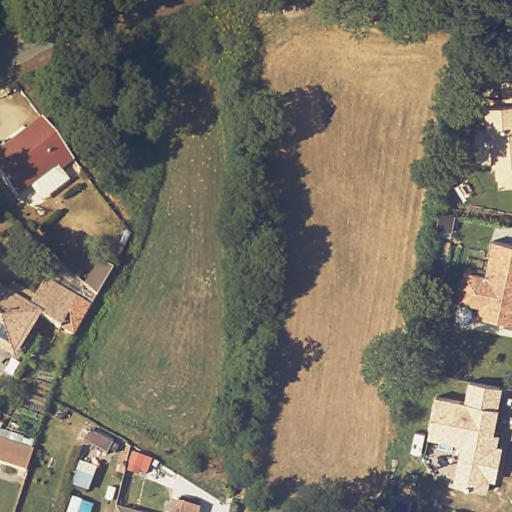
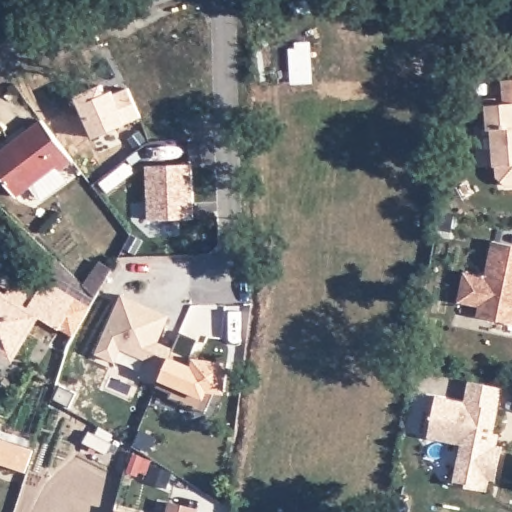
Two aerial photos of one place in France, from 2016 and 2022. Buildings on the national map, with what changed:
unchanged [(503,79),(512,79),(512,184),(507,184),(499,177),(498,165),(495,165),(492,128),(490,128),(488,104),(505,102),(505,96),(503,79)]
unchanged [(57,165),(17,195),(0,174),(0,153),(42,120),(74,160),(61,170),(57,165)]
new [(145,165),(193,162),(194,217),(146,217),(145,165)]
unchanged [(482,306),(461,302),(466,272),(487,277),(495,241),(512,245),(512,323),(480,316),(482,306)]
unchanged [(113,269),(97,296),(85,285),(100,261),(113,269)]
unchanged [(74,336),(59,328),(38,315),(28,332),(23,330),(10,351),(0,345),(0,292),(6,295),(13,285),(21,290),(34,297),(45,280),(77,299),(91,306),(74,336)]
new [(122,293),(171,313),(160,340),(174,345),(181,331),(198,337),(191,356),(231,360),(225,393),(213,391),(204,412),(169,397),(172,391),(139,377),(145,359),(121,348),(114,362),(96,354),(122,293)]
unchanged [(484,385),(499,388),(495,408),(496,409),(488,449),(498,451),(493,477),(488,476),(486,489),(456,483),(463,445),(428,437),(436,397),(465,402),(469,382),(484,385)]
unchanged [(90,431),(118,447),(115,452),(109,450),(107,453),(85,441),(90,431)]
unchanged [(35,447),(27,470),(0,462),(0,436),(35,447)]
unchanged [(74,486),(79,471),(93,476),(88,490),(74,486)]
unchanged [(170,500),(190,505),(188,512),(167,512),(170,500)]
unchanged [(115,507),(135,512),(114,512),(115,507)]

